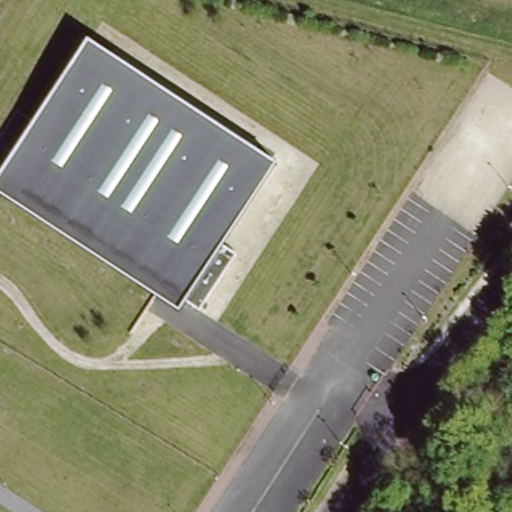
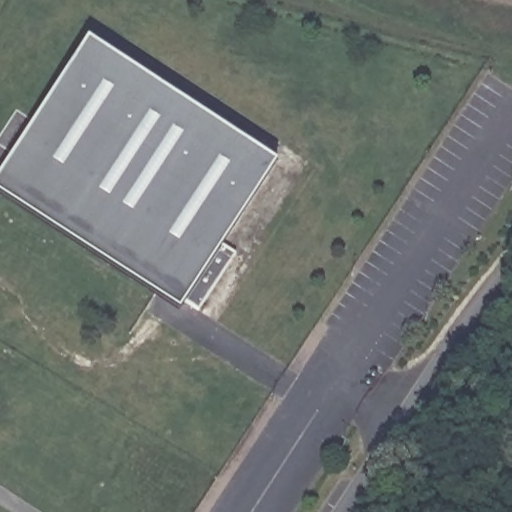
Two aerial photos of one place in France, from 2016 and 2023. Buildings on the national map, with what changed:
unchanged [(274,161),(179,309),(0,191),(0,174),(89,36),(274,161)]

